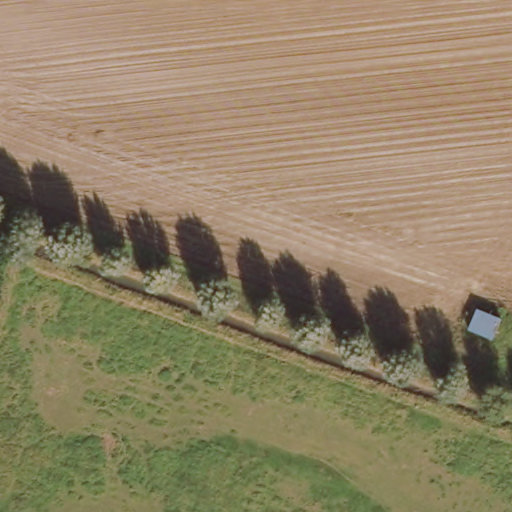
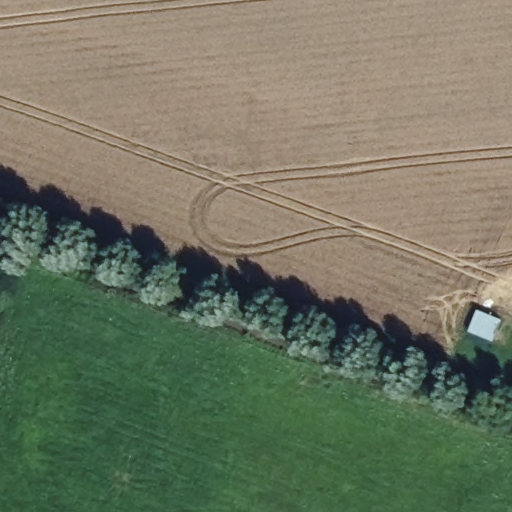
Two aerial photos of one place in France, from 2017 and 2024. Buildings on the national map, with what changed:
unchanged [(479,310),(504,319),(495,340),(471,332),(479,310)]

